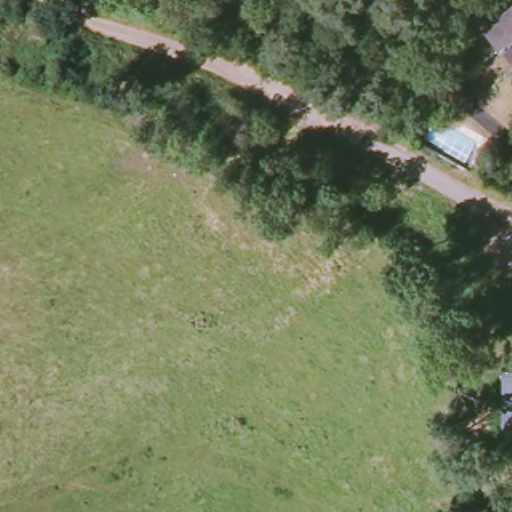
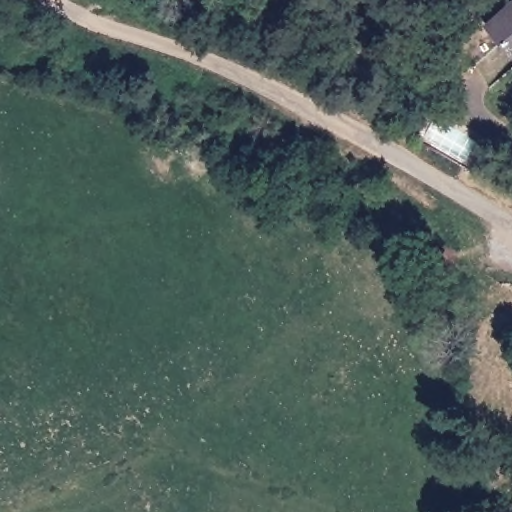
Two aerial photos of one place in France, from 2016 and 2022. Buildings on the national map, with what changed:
unchanged [(512,3),(512,60),(484,28),(512,3)]

